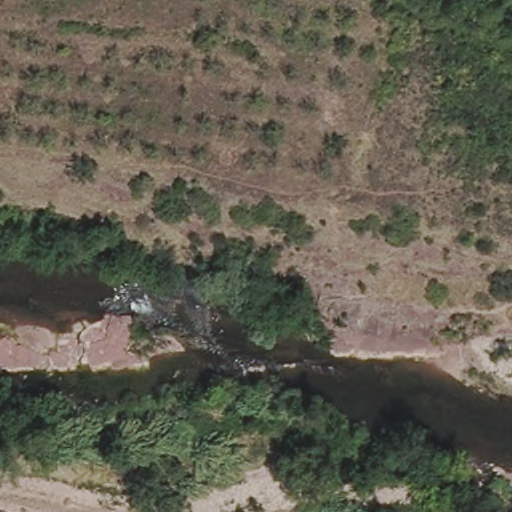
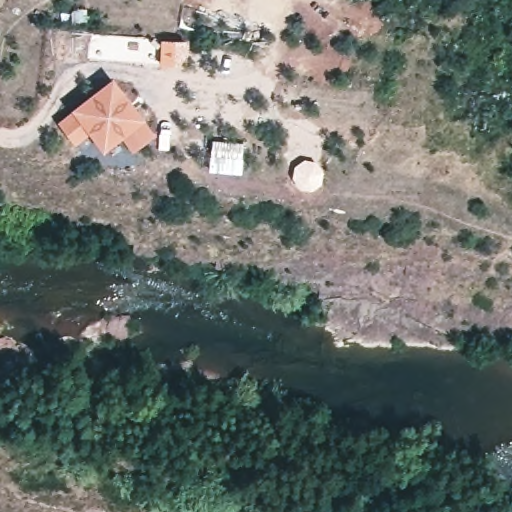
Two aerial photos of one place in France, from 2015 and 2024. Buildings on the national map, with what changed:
new [(133,152),(122,137),(103,151),(89,132),(76,144),(60,121),(72,109),(113,77),(146,120),(156,134),(133,152)]

